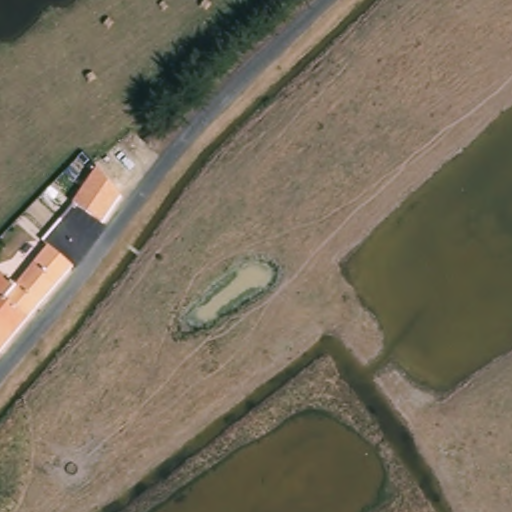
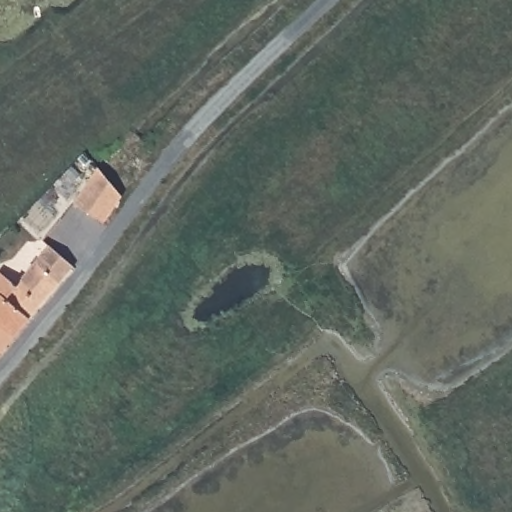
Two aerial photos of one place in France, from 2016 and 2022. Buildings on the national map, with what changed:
unchanged [(104,224),(74,205),(96,169),(120,197),(104,224)]
unchanged [(0,350),(0,280),(11,290),(44,250),(68,270),(34,310),(23,322),(0,350)]

